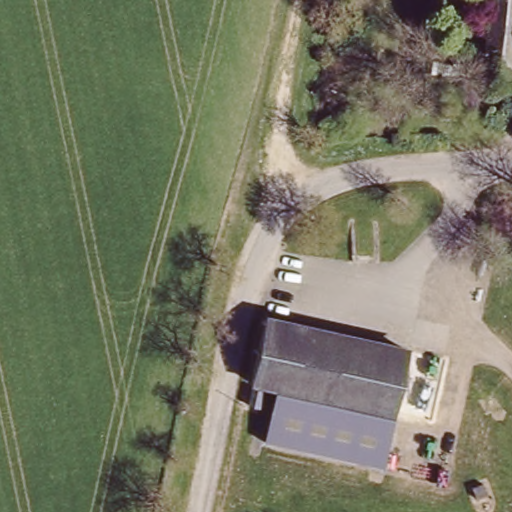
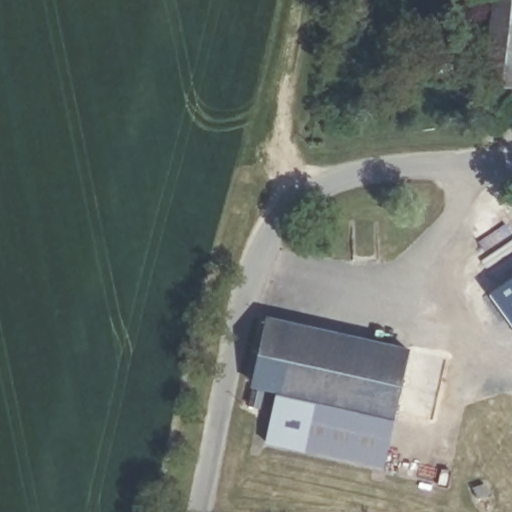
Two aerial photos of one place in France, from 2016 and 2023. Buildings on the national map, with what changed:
unchanged [(489,79),(498,0),(512,0),(512,82),(489,79)]
unchanged [(454,65),(467,68),(466,80),(472,82),(470,100),(412,91),(404,89),(410,57),(419,8),(429,10),(420,59),(434,62),(433,69),(452,72),(454,65)]
new [(512,277),(512,327),(488,294),(512,277)]
unchanged [(408,355),(394,413),(393,416),(275,386),(252,380),(267,316),(408,355)]
unchanged [(260,387),(255,405),(246,402),(250,384),(260,387)]
unchanged [(380,466),(262,436),(275,386),(393,416),(380,466)]
unchanged [(489,495),(476,502),(470,489),(483,483),(489,495)]

